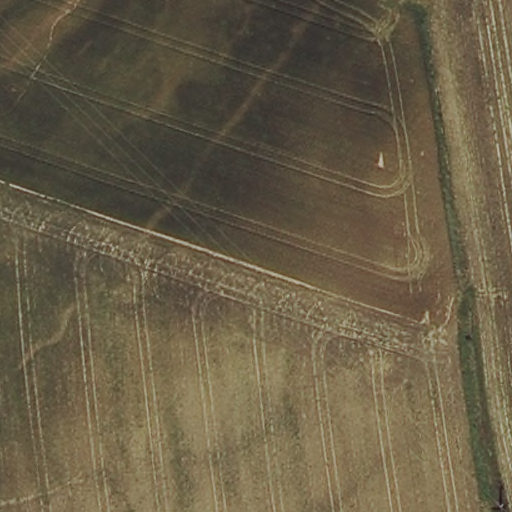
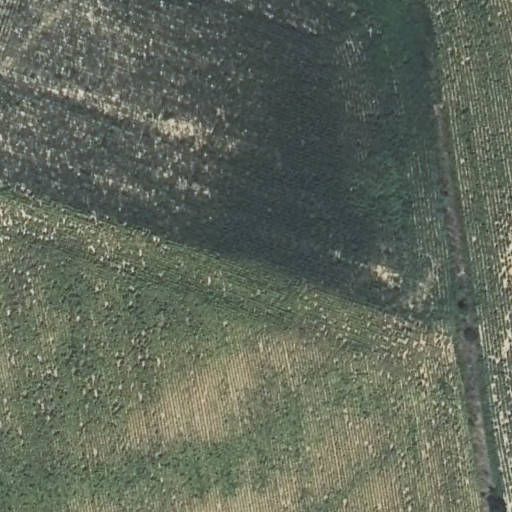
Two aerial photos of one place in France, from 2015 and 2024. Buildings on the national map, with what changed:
[]

